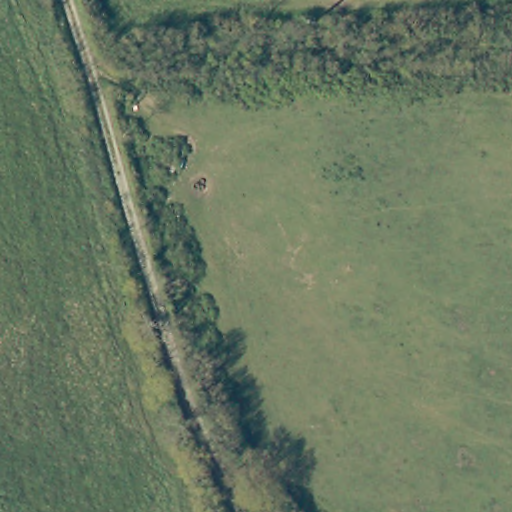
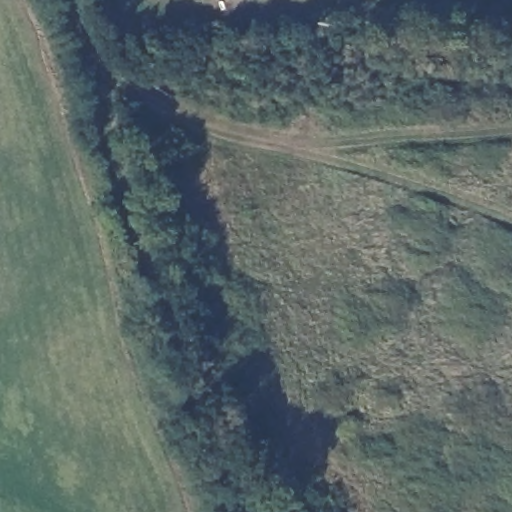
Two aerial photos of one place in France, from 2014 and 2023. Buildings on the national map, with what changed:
[]

